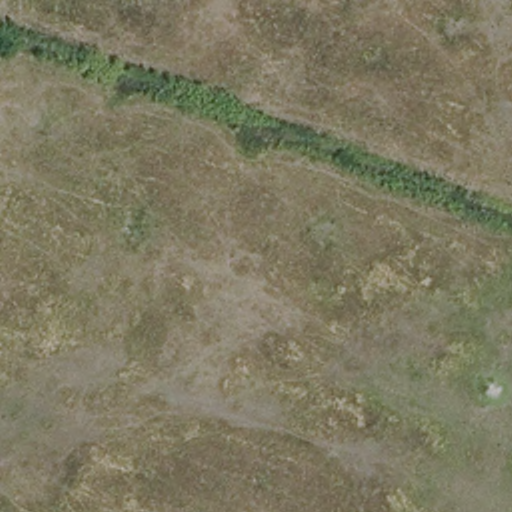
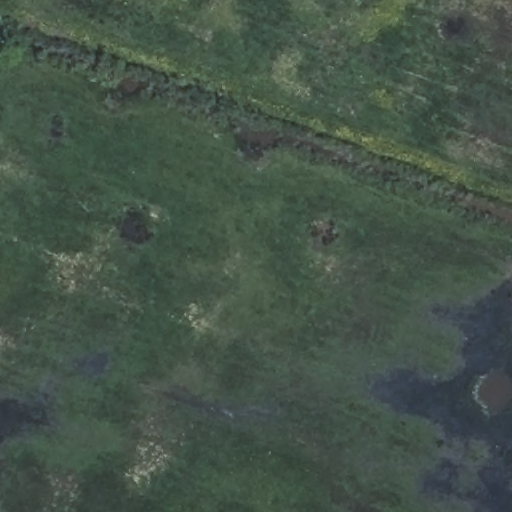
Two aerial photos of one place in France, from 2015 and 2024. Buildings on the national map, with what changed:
[]

